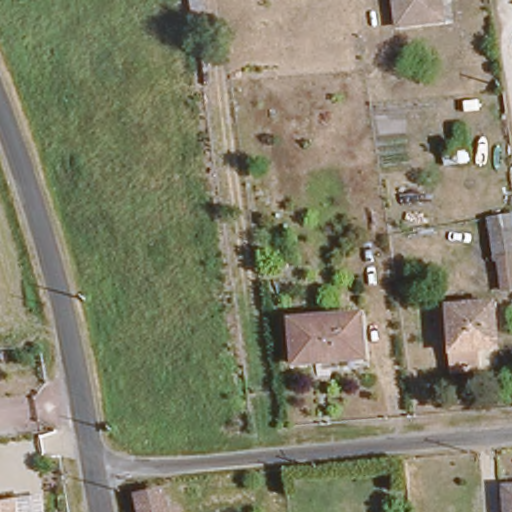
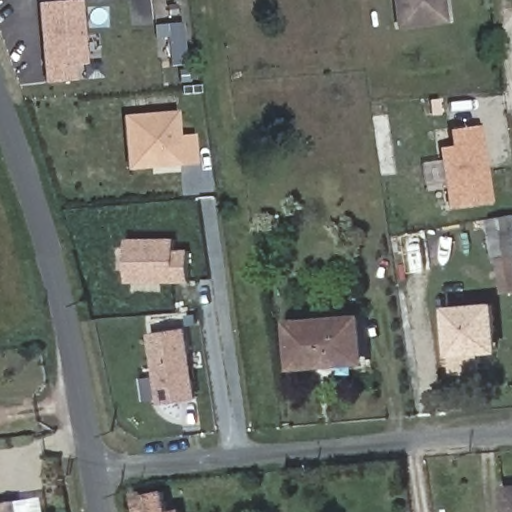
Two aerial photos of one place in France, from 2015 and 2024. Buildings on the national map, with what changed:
new [(86,65),(74,65),(75,80),(43,83),(37,4),(81,0),(86,65)]
unchanged [(441,20),(397,25),(394,0),(439,0),(441,20)]
new [(190,65),(171,66),(169,39),(155,37),(155,25),(185,25),(190,65)]
new [(179,135),(195,135),(197,164),(125,170),(121,119),(177,110),(179,135)]
new [(443,189),(424,192),(420,163),(439,160),(437,149),(449,146),(447,131),(481,126),(492,202),(446,209),(443,189)]
unchanged [(505,234),(509,263),(492,265),(488,236),(505,234)]
new [(191,281),(128,282),(127,237),(176,237),(177,250),(191,249),(191,281)]
unchanged [(489,300),(492,345),(471,347),(473,365),(450,367),(445,303),(489,300)]
unchanged [(347,313),(354,353),(298,362),(291,322),(347,313)]
new [(198,397),(160,404),(149,332),(187,326),(198,397)]
unchanged [(498,512),(494,487),(512,485),(512,512),(498,512)]
unchanged [(151,493),(155,512),(136,512),(133,498),(151,493)]
unchanged [(18,512),(0,512),(0,503),(16,500),(18,512)]
unchanged [(168,512),(157,512),(167,510),(168,512)]

